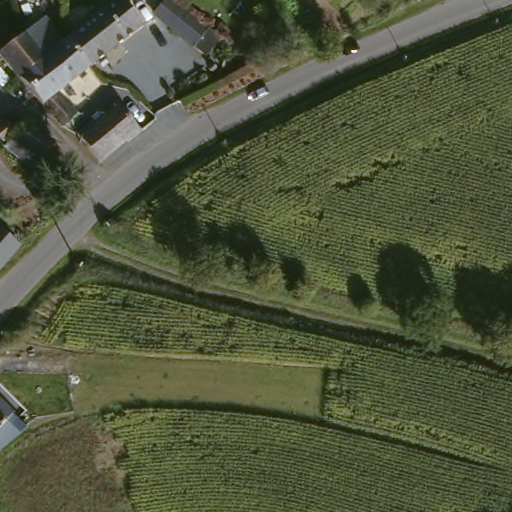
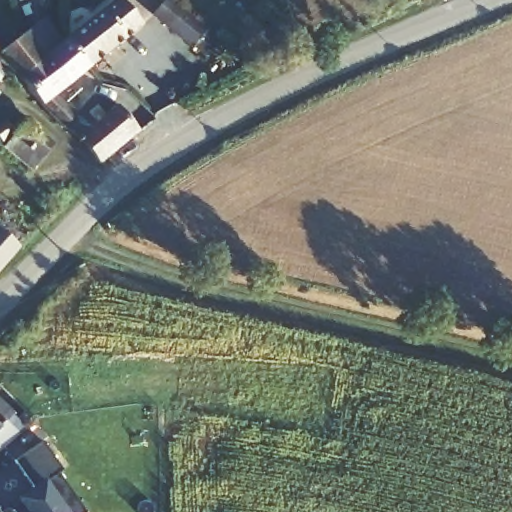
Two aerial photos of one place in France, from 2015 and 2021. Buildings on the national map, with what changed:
unchanged [(68,39),(118,0),(123,0),(143,25),(89,68),(68,39)]
unchanged [(194,47),(154,14),(165,0),(171,0),(208,30),(194,47)]
unchanged [(69,84),(31,30),(45,18),(64,42),(68,39),(89,68),(69,84)]
unchanged [(16,40),(31,30),(69,84),(56,95),(77,115),(63,129),(43,105),(0,59),(0,54),(16,40)]
unchanged [(81,139),(120,105),(127,114),(140,131),(101,164),(81,139)]
unchanged [(16,132),(4,144),(0,139),(0,126),(7,121),(12,126),(16,132)]
unchanged [(5,147),(12,138),(16,132),(23,122),(55,145),(43,160),(33,171),(5,147)]
unchanged [(20,247),(0,270),(0,230),(20,247)]
unchanged [(12,415),(6,421),(20,435),(16,438),(0,451),(0,404),(12,415)]
new [(35,491),(15,462),(44,442),(65,471),(61,474),(88,512),(13,512),(13,511),(23,504),(21,501),(35,491)]

